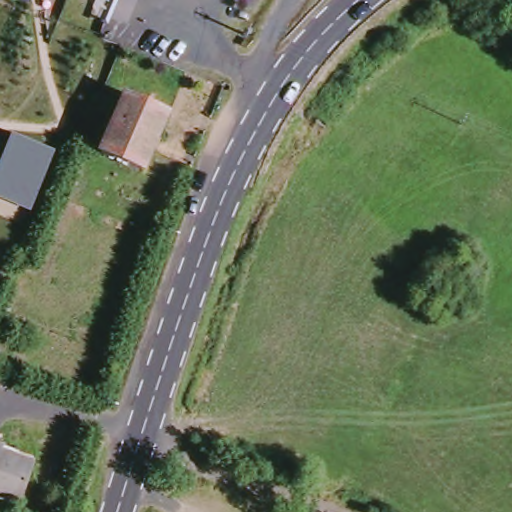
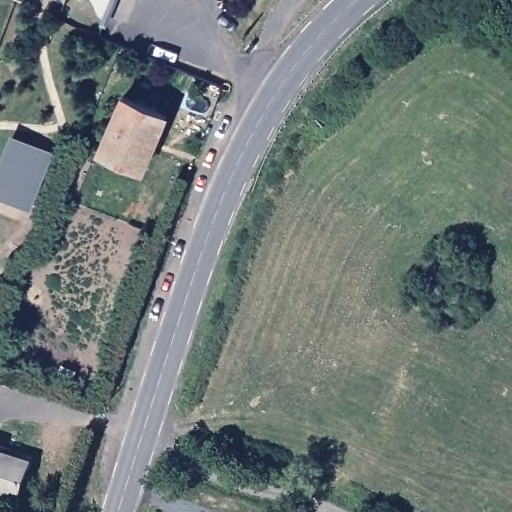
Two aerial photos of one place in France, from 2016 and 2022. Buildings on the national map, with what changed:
unchanged [(98,154),(117,98),(157,116),(138,170),(98,154)]
unchanged [(54,150),(30,211),(0,199),(0,161),(12,134),(54,150)]
unchanged [(0,445),(13,451),(12,455),(27,464),(13,504),(0,498),(0,445)]

